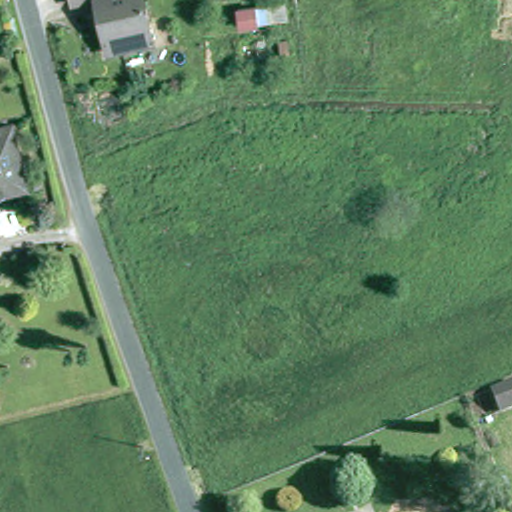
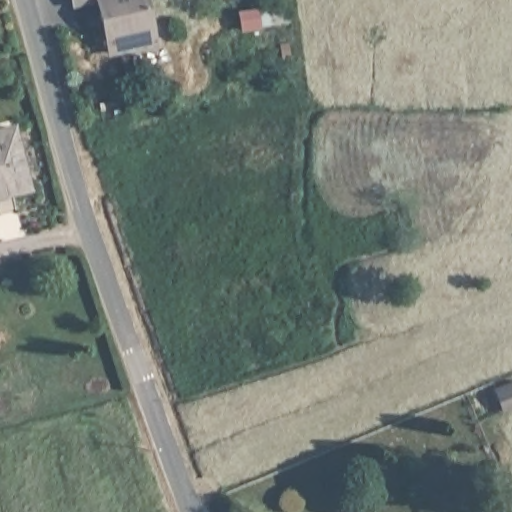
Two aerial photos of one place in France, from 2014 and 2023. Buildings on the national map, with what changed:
unchanged [(113,59),(102,4),(78,9),(76,0),(147,0),(157,50),(113,59)]
unchanged [(257,12),(262,29),(244,33),(240,16),(257,12)]
unchanged [(10,125),(23,175),(25,186),(0,193),(0,128),(10,125)]
unchanged [(491,402),(512,394),(512,416),(499,422),(491,402)]

